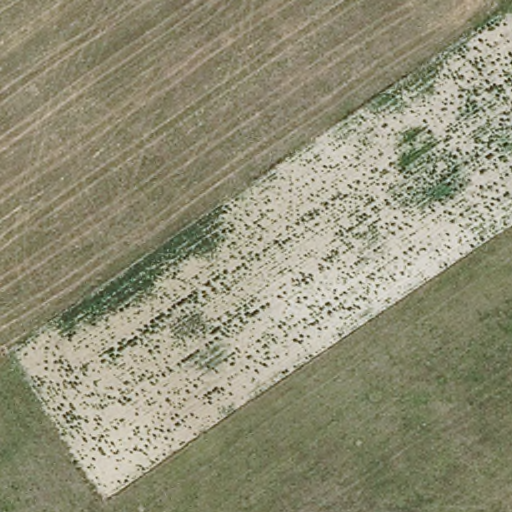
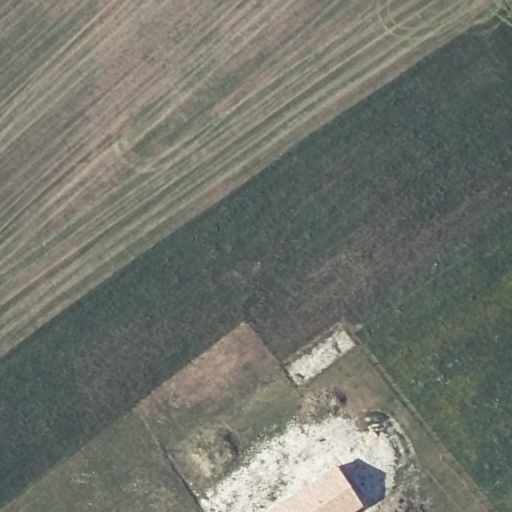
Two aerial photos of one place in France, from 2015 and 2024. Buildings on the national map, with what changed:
new [(362,505),(351,512),(262,512),(262,510),(335,462),(362,505)]

